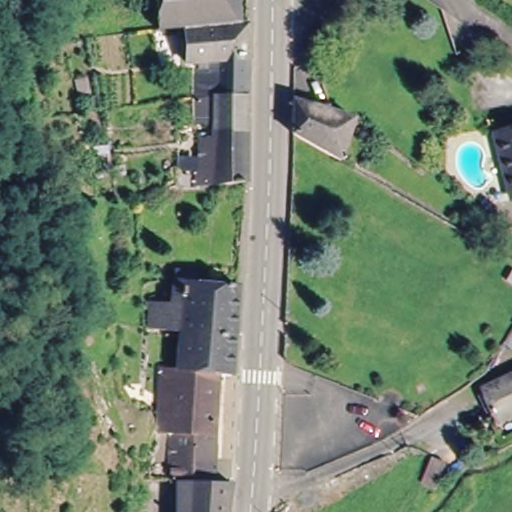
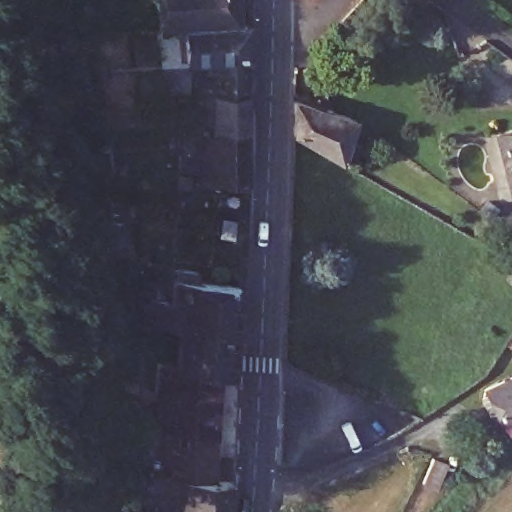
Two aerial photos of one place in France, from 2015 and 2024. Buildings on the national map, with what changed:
unchanged [(157,0),(241,0),(242,25),(187,27),(159,29),(157,0)]
unchanged [(195,99),(194,62),(188,62),(187,27),(242,25),(253,25),(252,59),(250,59),(251,97),(195,99)]
unchanged [(199,191),(203,141),(214,141),(214,127),(197,128),(195,99),(251,97),(250,186),(199,191)]
unchanged [(294,100),(354,118),(343,154),(293,134),(294,100)]
unchanged [(512,187),(496,130),(512,126),(512,187)]
unchanged [(179,193),(180,179),(193,179),(193,192),(179,193)]
unchanged [(221,370),(179,366),(182,327),(150,321),(155,285),(164,286),(164,296),(176,297),(178,273),(178,265),(203,269),(203,277),(243,281),(235,371),(221,370)]
unchanged [(512,340),(510,339),(512,337),(512,340)]
unchanged [(215,429),(172,427),(174,401),(168,401),(169,390),(178,390),(179,366),(221,370),(215,429)]
unchanged [(486,395),(512,382),(512,421),(500,426),(486,395)]
unchanged [(215,429),(211,478),(183,474),(168,473),(172,427),(215,429)]
unchanged [(179,512),(183,474),(211,478),(229,480),(223,512),(179,512)]

